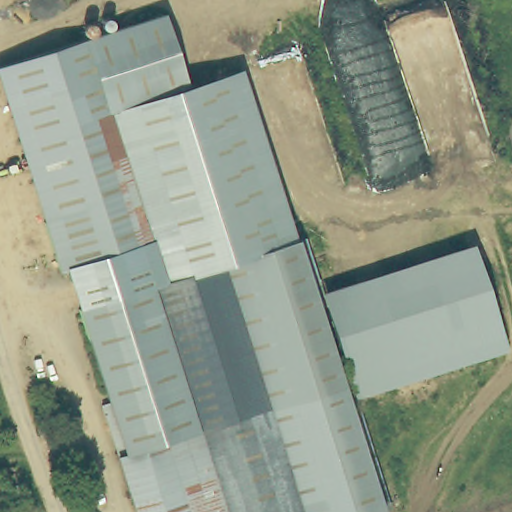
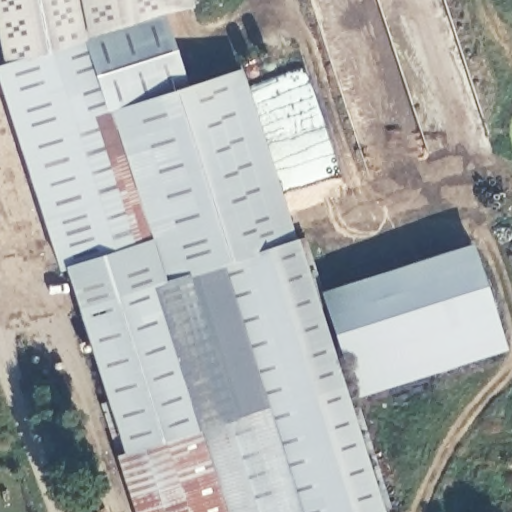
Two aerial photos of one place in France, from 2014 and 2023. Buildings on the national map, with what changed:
new [(0,40),(0,0),(195,0),(196,6),(162,15),(5,65),(0,40)]
unchanged [(155,93),(197,218),(55,264),(0,86),(0,67),(162,15),(184,83),(155,93)]
unchanged [(64,261),(197,218),(155,93),(184,83),(242,67),(296,237),(212,264),(211,260),(79,301),(64,261)]
unchanged [(296,237),(381,502),(349,512),(291,512),(212,264),(296,237)]
unchanged [(329,305),(478,257),(505,342),(357,391),(329,305)]
unchanged [(174,474),(162,435),(127,447),(79,301),(211,260),(212,264),(291,512),(138,512),(131,488),(174,474)]
unchanged [(129,488),(109,425),(116,422),(125,447),(127,447),(162,435),(174,474),(131,488),(129,488)]
unchanged [(74,471),(75,468),(77,466),(80,466),(81,466),(85,469),(87,472),(88,475),(77,479),(74,471)]

